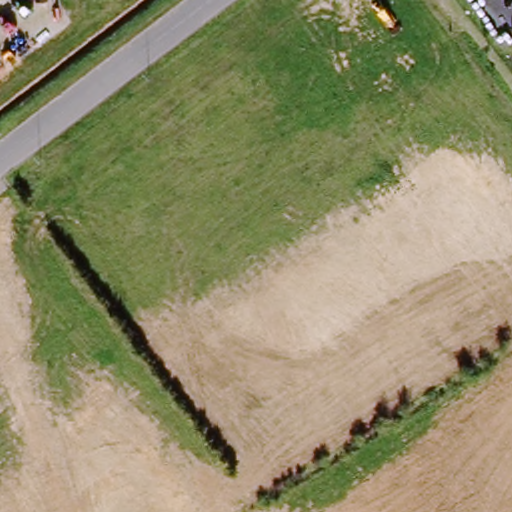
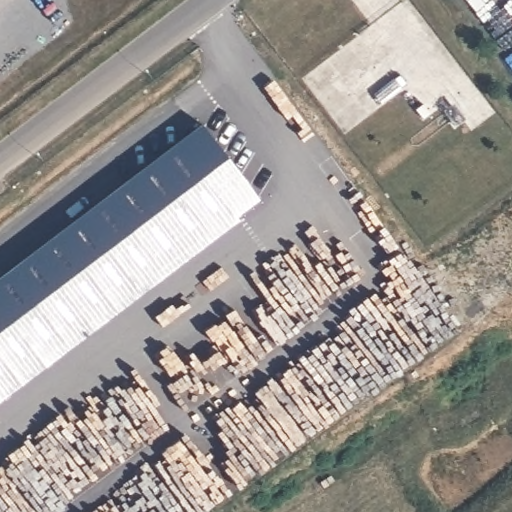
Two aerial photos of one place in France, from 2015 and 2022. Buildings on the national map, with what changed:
new [(259,205),(234,223),(178,150),(203,131),(259,205)]
new [(0,345),(0,285),(178,150),(227,215),(20,372),(0,345)]
new [(0,400),(0,386),(20,372),(227,215),(234,223),(0,400)]
new [(0,386),(0,345),(20,372),(0,386)]

